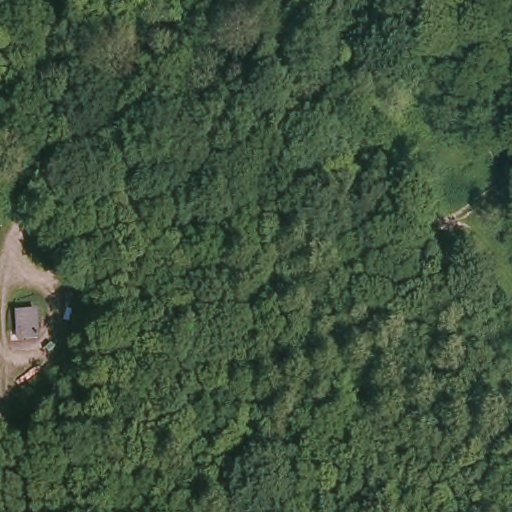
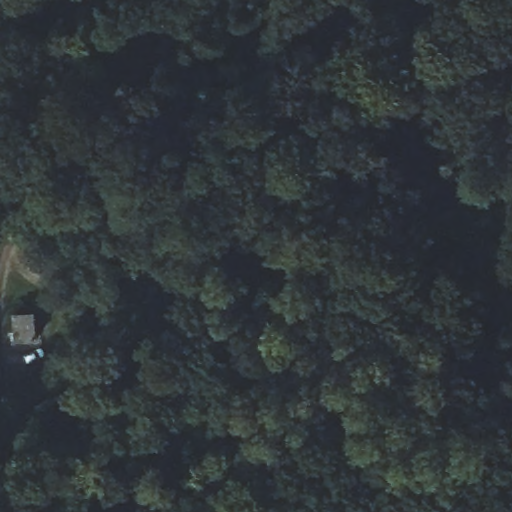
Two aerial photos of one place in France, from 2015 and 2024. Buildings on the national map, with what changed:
unchanged [(42,342),(17,340),(16,312),(37,308),(42,342)]

